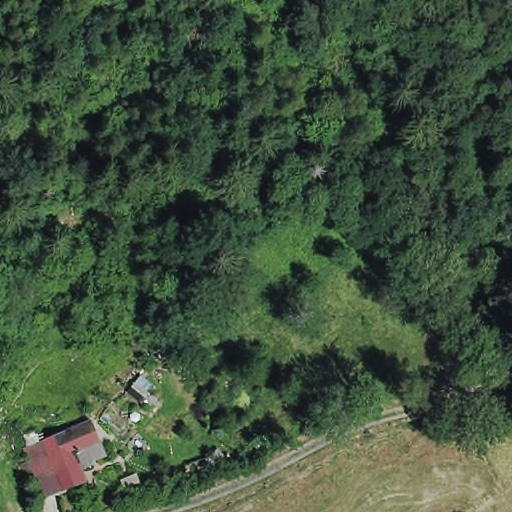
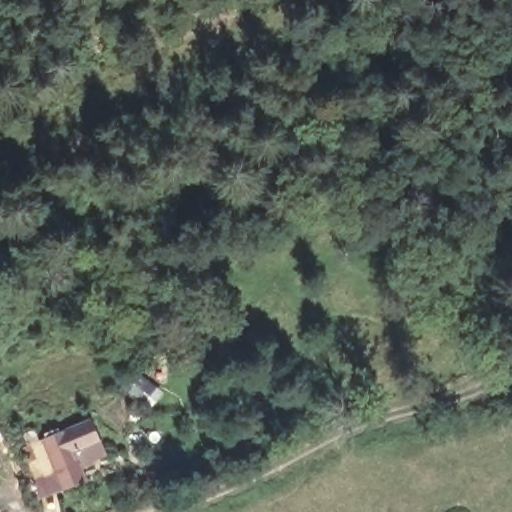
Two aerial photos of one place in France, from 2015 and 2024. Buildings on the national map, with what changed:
unchanged [(38,485),(25,454),(45,445),(49,444),(92,425),(105,455),(82,466),(85,472),(89,483),(69,492),(65,493),(46,501),(38,485)]

